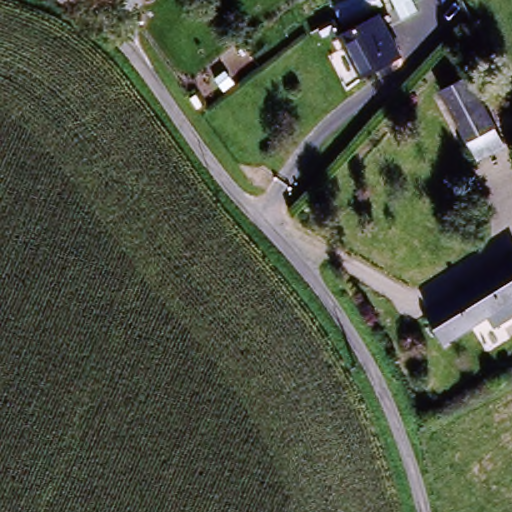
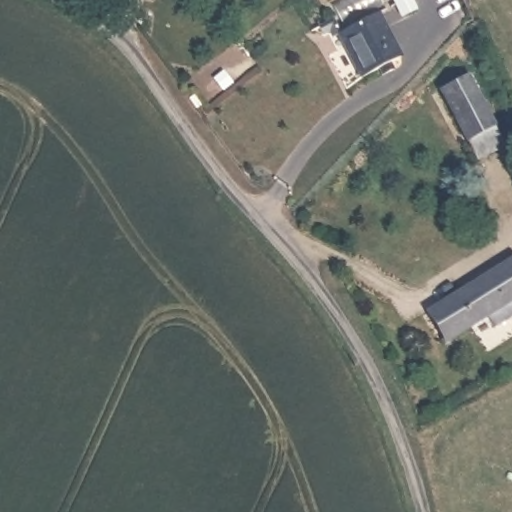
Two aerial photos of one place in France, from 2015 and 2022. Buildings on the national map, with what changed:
unchanged [(398,0),(395,1),(394,0),(398,0)]
unchanged [(353,35),(382,18),(403,58),(372,74),(353,35)]
unchanged [(482,156),(446,89),(468,78),(504,144),(482,156)]
unchanged [(448,344),(430,311),(512,260),(512,306),(448,344)]

